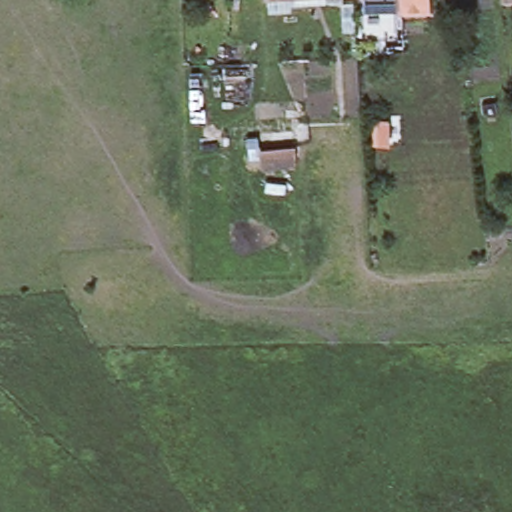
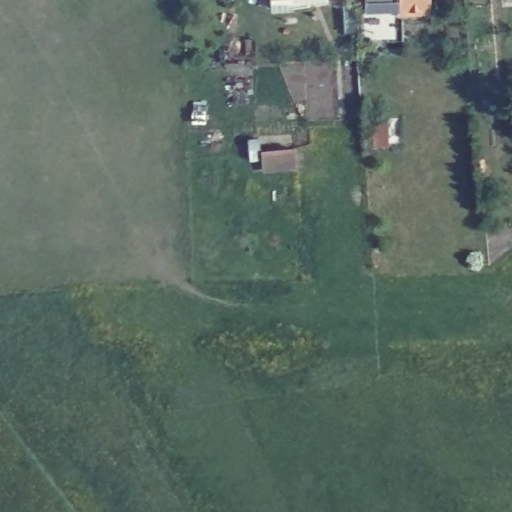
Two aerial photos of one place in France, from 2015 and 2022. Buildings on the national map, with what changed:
unchanged [(357,10),(357,0),(424,0),(425,17),(390,19),(390,9),(369,10),(357,10)]
unchanged [(497,2),(497,0),(512,0),(512,2),(497,2)]

